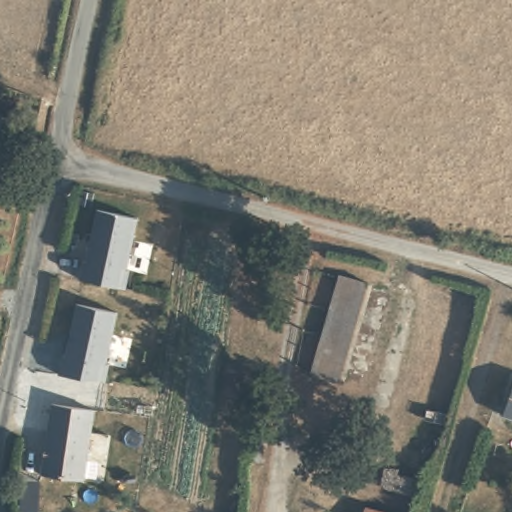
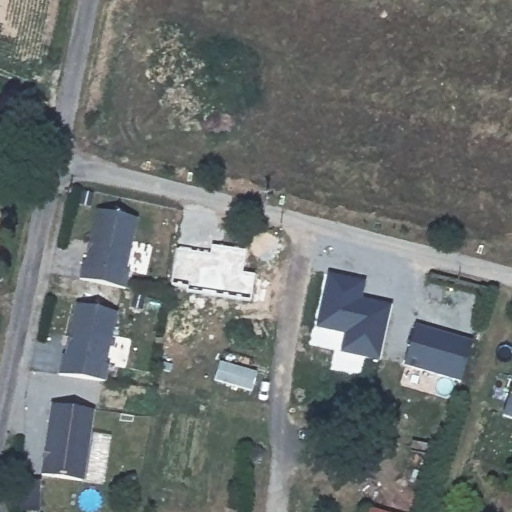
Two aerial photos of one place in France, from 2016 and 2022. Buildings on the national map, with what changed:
unchanged [(96,214),(98,215),(137,220),(130,272),(132,273),(130,291),(84,284),(86,266),(89,266),(96,214)]
unchanged [(77,304),(118,310),(110,362),(113,363),(110,381),(69,375),(64,374),(66,356),(69,356),(77,304)]
new [(416,326),(473,342),(462,381),(405,365),(416,326)]
unchanged [(512,387),(512,423),(505,421),(512,387)]
unchanged [(54,403),(92,410),(81,481),(42,475),(45,458),(46,450),(54,403)]
unchanged [(260,455),(257,465),(249,464),(243,463),(244,455),(251,451),(260,455)]
unchanged [(365,501),(402,512),(361,512),(365,501)]

